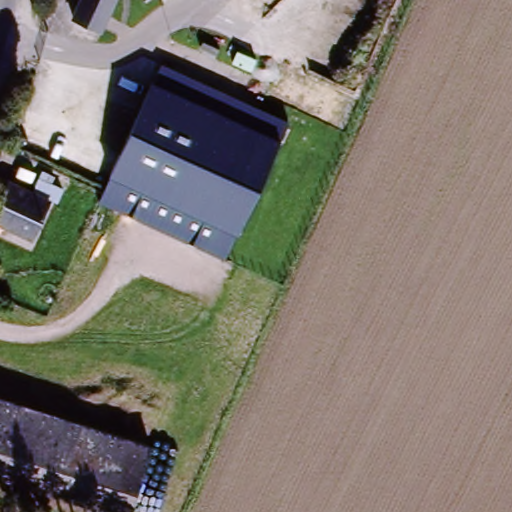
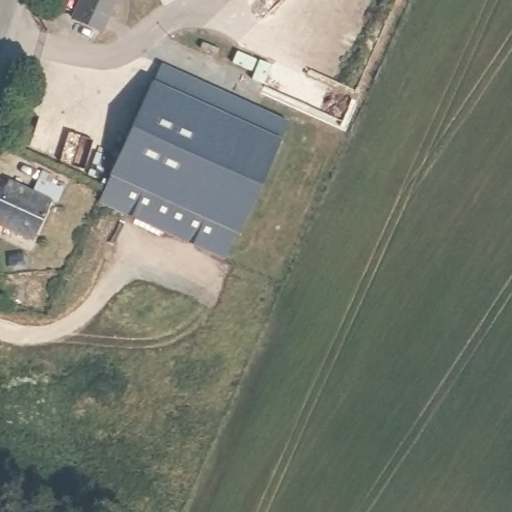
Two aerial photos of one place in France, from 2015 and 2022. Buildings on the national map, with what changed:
unchanged [(70,27),(81,0),(115,0),(99,39),(70,27)]
unchanged [(99,198),(153,72),(289,130),(246,231),(231,267),(138,228),(94,209),(99,198)]
unchanged [(52,199),(38,240),(0,227),(0,192),(5,194),(8,183),(52,199)]
demolished [(129,512),(88,512),(0,483),(0,399),(150,447),(129,512)]

